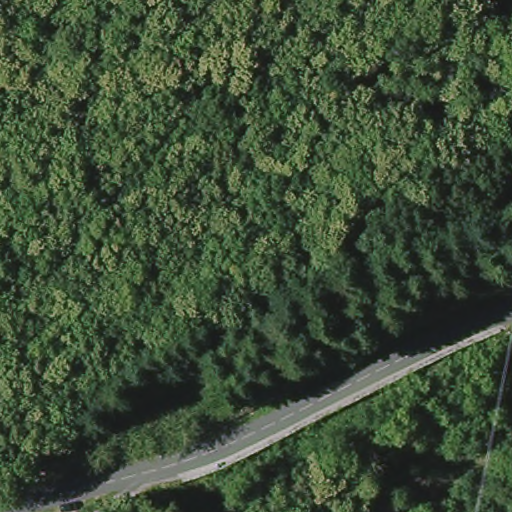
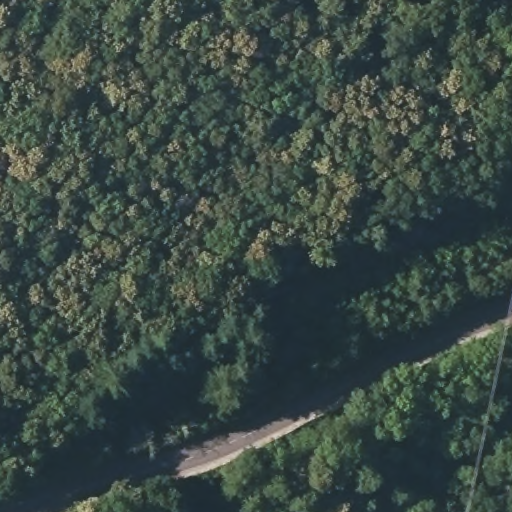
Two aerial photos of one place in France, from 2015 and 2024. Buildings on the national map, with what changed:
[]

